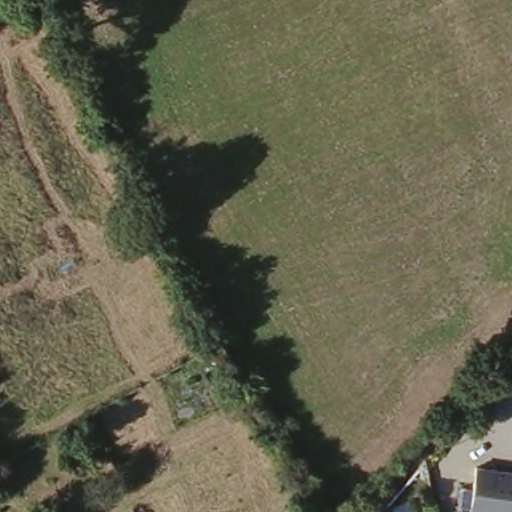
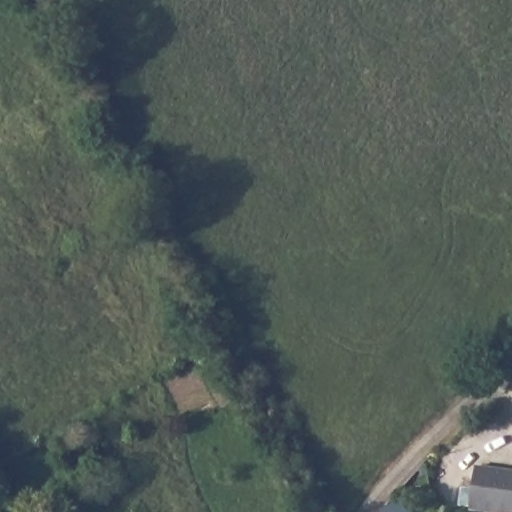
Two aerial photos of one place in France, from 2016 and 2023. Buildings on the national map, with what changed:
unchanged [(512,471),(512,512),(482,512),(468,510),(474,466),(512,471)]

